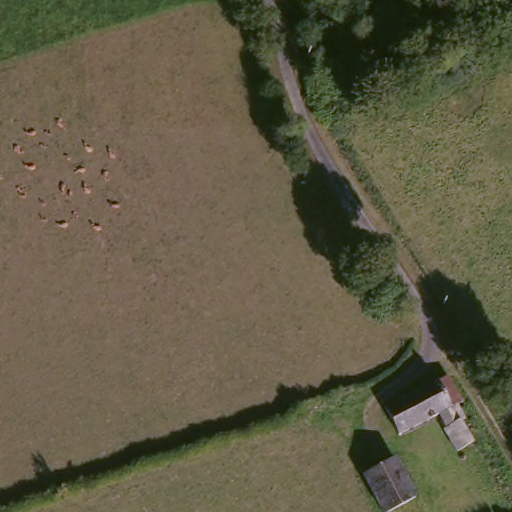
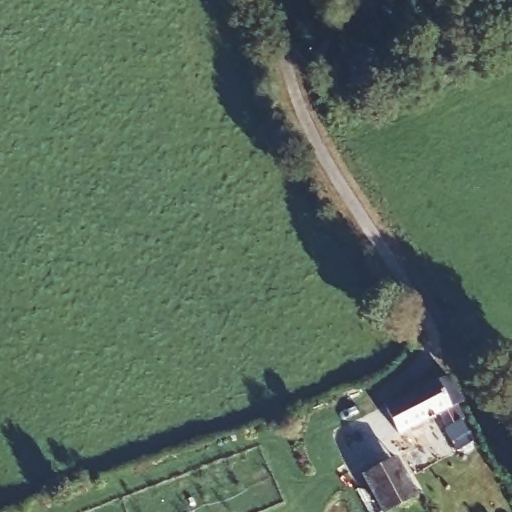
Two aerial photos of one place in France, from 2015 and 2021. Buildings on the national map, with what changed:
unchanged [(443,406),(436,411),(461,450),(444,460),(418,422),(379,442),(364,417),(429,383),(443,406)]
unchanged [(413,501),(389,512),(374,512),(356,482),(393,464),(413,501)]

